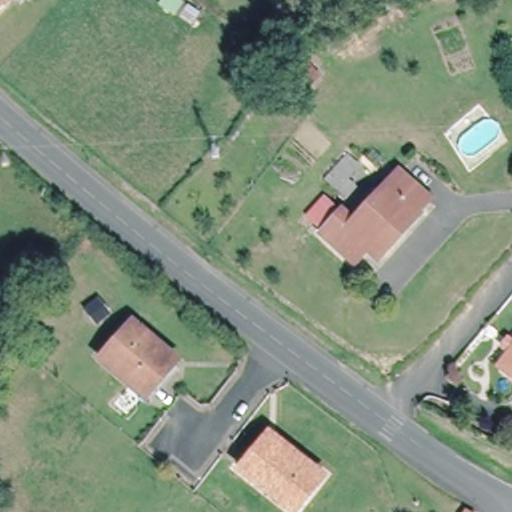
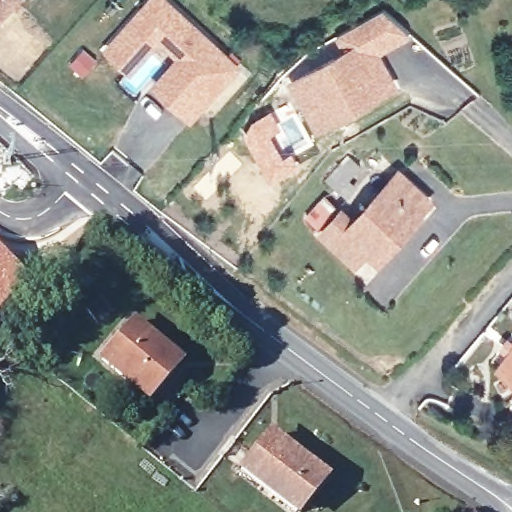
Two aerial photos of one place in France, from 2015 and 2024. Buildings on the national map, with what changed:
unchanged [(3,0),(0,2),(0,0),(3,0)]
new [(194,121),(151,86),(177,56),(161,42),(132,74),(103,48),(149,0),(169,0),(243,65),(194,121)]
new [(288,81),(343,50),(336,36),(382,8),(412,34),(382,52),(400,83),(317,132),(288,81)]
new [(85,49),(98,62),(84,76),(71,63),(85,49)]
unchanged [(384,254),(365,237),(352,251),(321,222),(339,202),(351,212),(386,173),(396,161),(434,195),(424,206),(425,208),(411,224),(398,238),(384,254)]
new [(30,278),(0,312),(0,254),(30,278)]
unchanged [(178,361),(146,398),(102,360),(133,323),(178,361)]
unchanged [(506,349),(498,343),(504,334),(512,340),(512,374),(496,362),(506,349)]
unchanged [(326,475),(297,512),(292,512),(241,472),(268,437),(299,461),(303,457),(326,475)]

